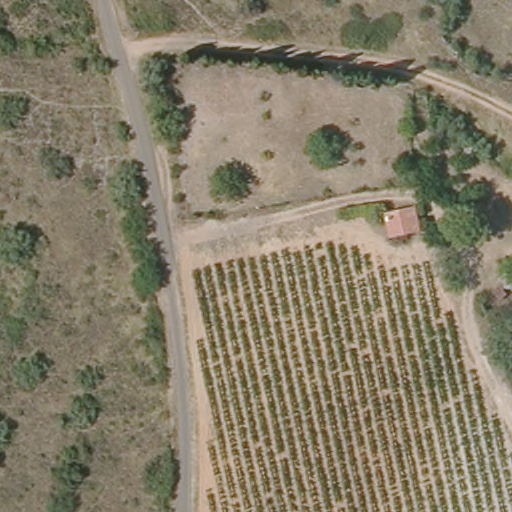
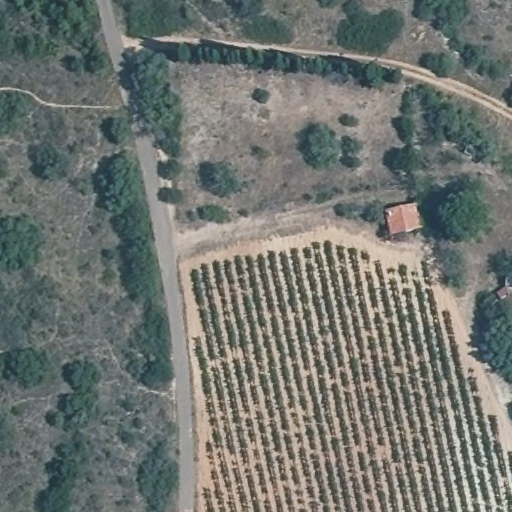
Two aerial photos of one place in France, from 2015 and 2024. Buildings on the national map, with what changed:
unchanged [(424,208),(431,229),(398,238),(394,213),(424,208)]

